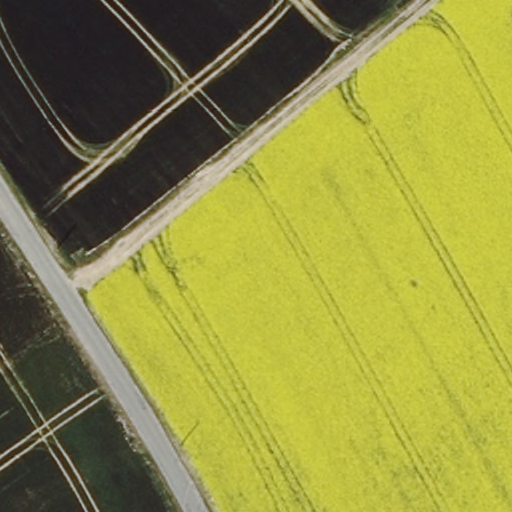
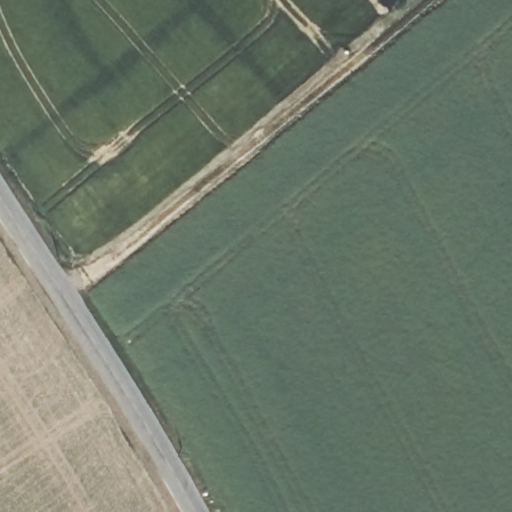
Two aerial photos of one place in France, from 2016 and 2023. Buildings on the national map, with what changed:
[]

